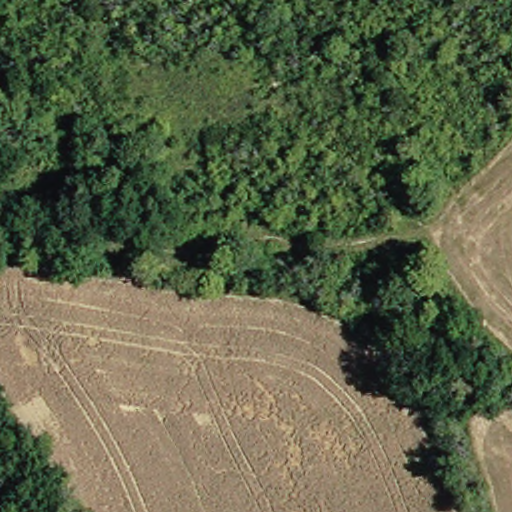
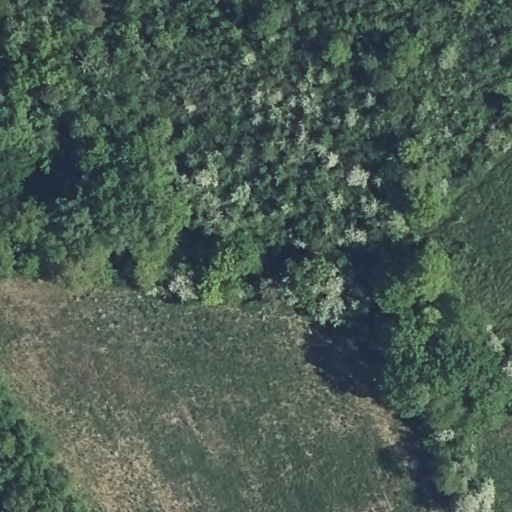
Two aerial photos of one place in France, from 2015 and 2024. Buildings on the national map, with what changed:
[]

